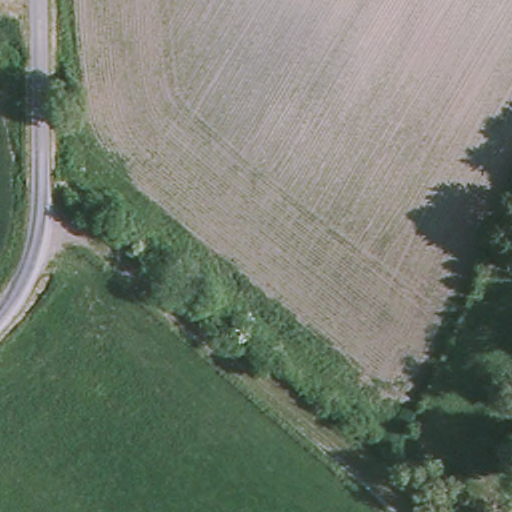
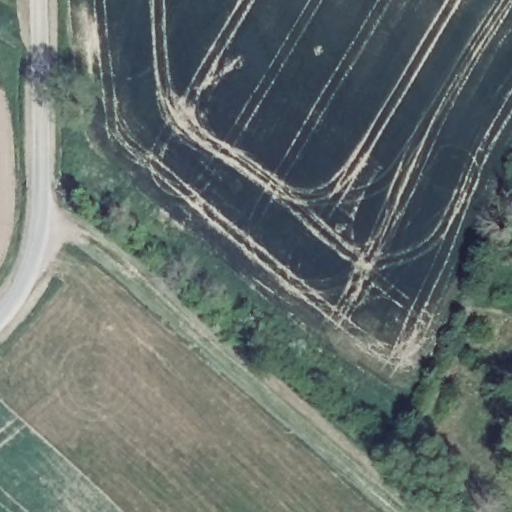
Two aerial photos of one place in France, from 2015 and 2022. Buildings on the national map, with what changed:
unchanged [(495,487),(511,473),(501,462),(511,453),(512,454),(512,498),(508,501),(495,487)]

